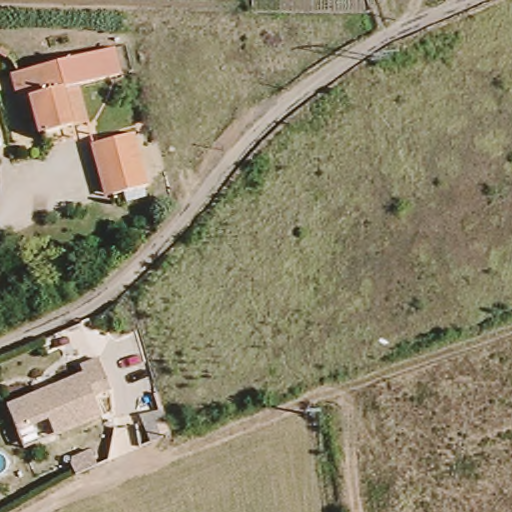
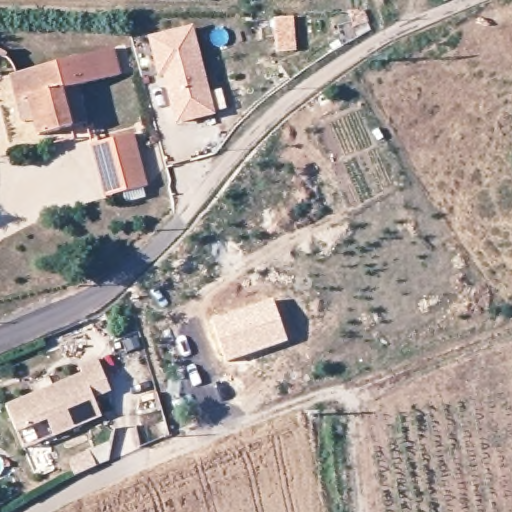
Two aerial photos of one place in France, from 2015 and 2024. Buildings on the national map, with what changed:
new [(165,77),(160,78),(150,37),(194,27),(215,115),(175,126),(165,77)]
unchanged [(38,136),(33,120),(23,122),(17,103),(10,77),(70,60),(112,48),(119,75),(76,86),(86,123),(69,128),(58,130),(38,136)]
unchanged [(92,145),(100,143),(134,132),(150,185),(114,195),(107,197),(92,145)]
new [(273,298),(288,342),(222,363),(207,320),(273,298)]
unchanged [(18,434),(7,410),(82,377),(80,369),(99,360),(113,391),(97,397),(105,417),(59,439),(48,420),(18,434)]
new [(140,416),(160,409),(168,435),(148,442),(140,416)]
unchanged [(74,449),(95,441),(102,457),(80,465),(74,449)]

